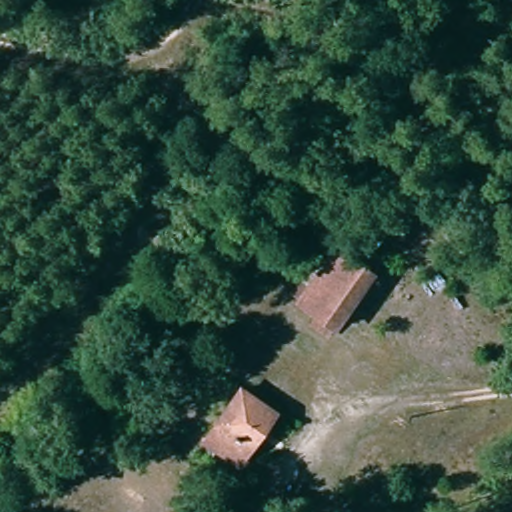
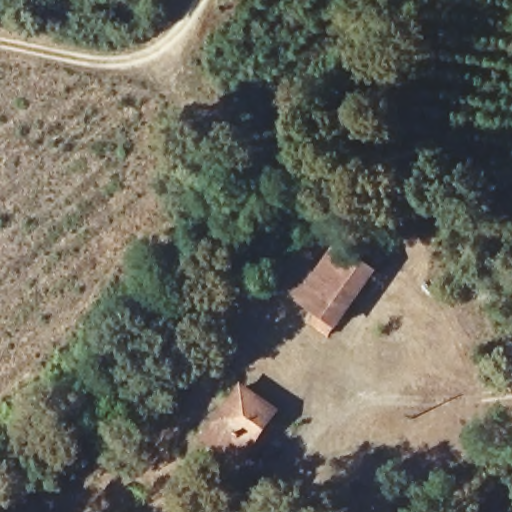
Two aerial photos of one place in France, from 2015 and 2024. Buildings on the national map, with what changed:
unchanged [(343,270),(355,254),(378,271),(337,328),(313,311),(343,270)]
unchanged [(296,299),(326,257),(343,270),(313,311),(296,299)]
unchanged [(239,457),(206,431),(242,384),(275,409),(239,457)]

